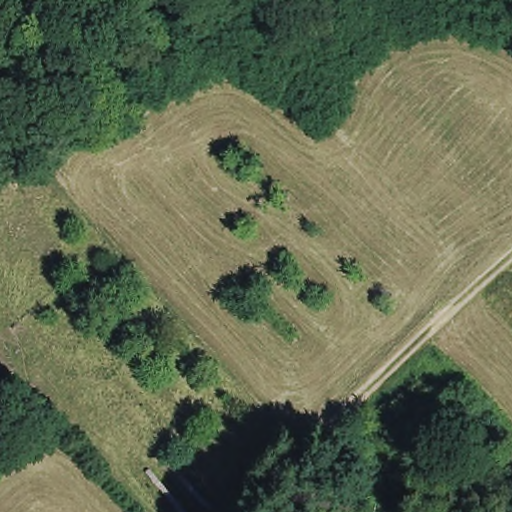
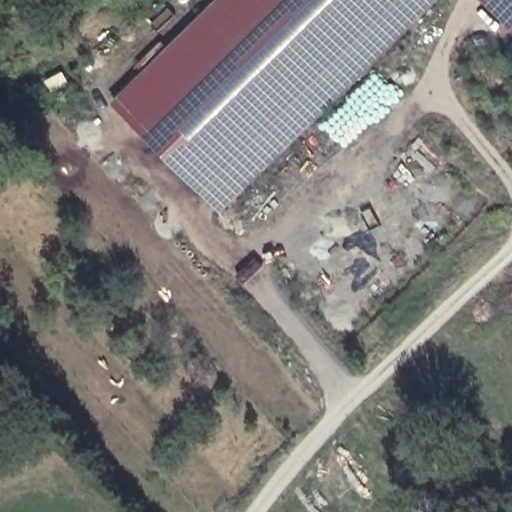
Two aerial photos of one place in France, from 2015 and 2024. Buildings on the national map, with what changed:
new [(222,215),(118,111),(231,0),(439,0),(440,1),(222,215)]
new [(483,0),(512,0),(512,32),(482,1),(483,0)]

